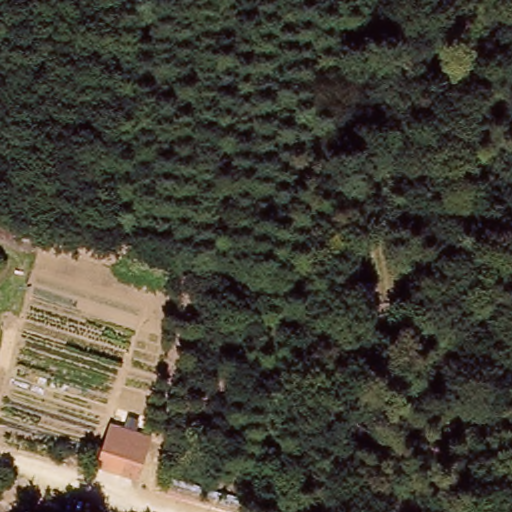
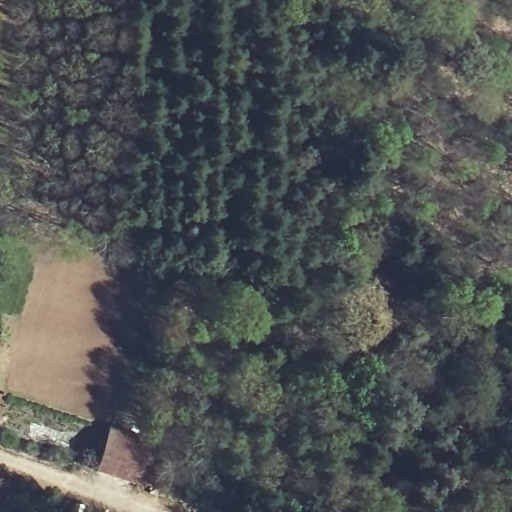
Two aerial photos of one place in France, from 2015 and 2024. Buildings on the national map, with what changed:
unchanged [(338,305),(337,242),(358,242),(358,284),(369,286),(370,305),(338,305)]
unchanged [(106,428),(150,441),(137,486),(94,472),(106,428)]

